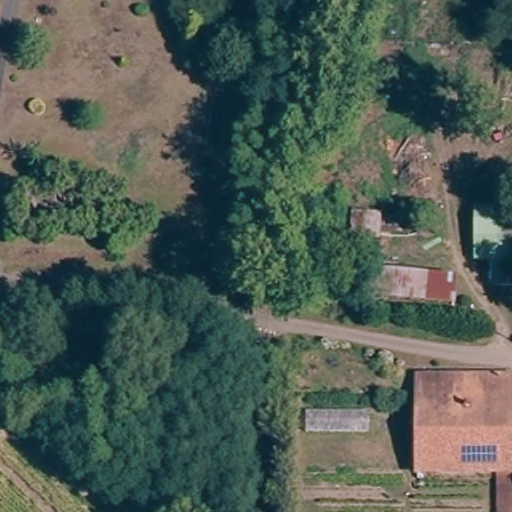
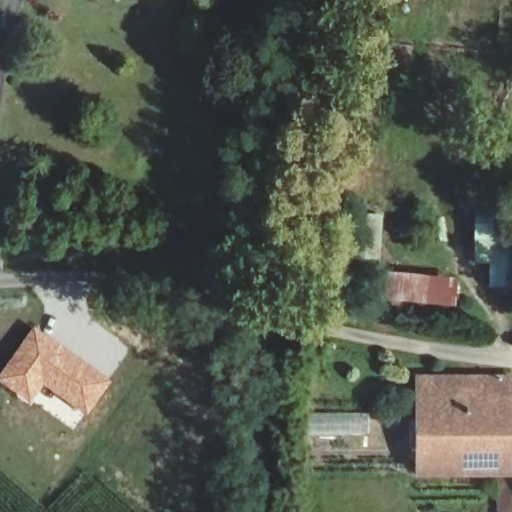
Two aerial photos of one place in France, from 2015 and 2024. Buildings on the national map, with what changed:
unchanged [(512,205),(512,279),(496,279),(496,254),(479,254),(479,205),(512,205)]
unchanged [(384,268),(455,277),(452,304),(381,296),(384,268)]
new [(111,377),(84,416),(43,387),(29,404),(0,383),(0,371),(33,325),(111,377)]
unchanged [(419,469),(421,372),(512,373),(512,470),(419,469)]

